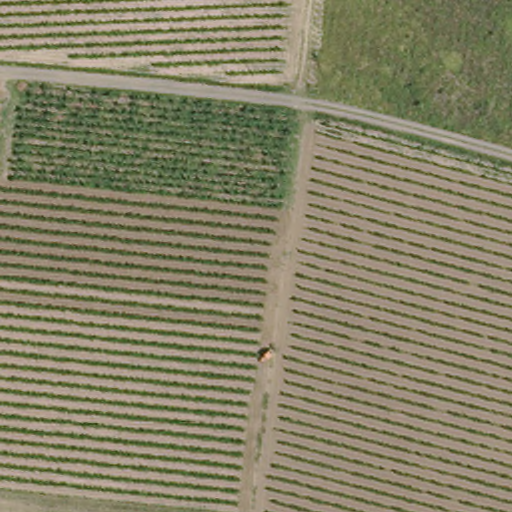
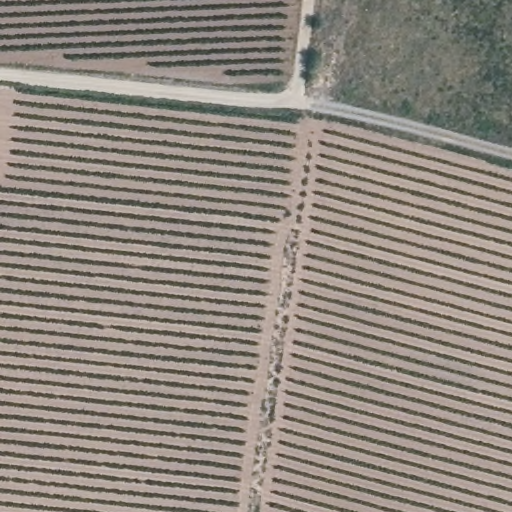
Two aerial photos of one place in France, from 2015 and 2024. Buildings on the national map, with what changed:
[]

